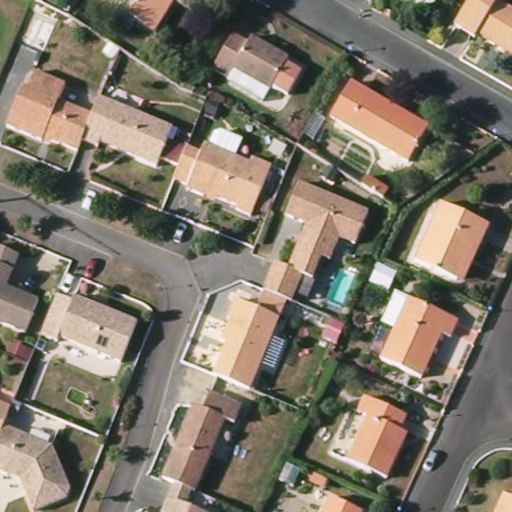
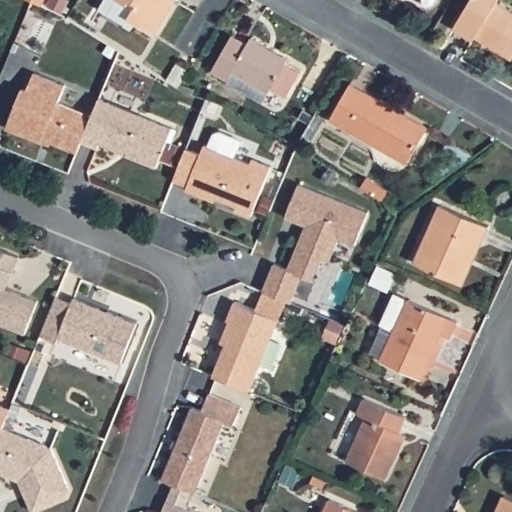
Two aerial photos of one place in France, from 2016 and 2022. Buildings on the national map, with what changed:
unchanged [(173,3),(155,38),(124,22),(132,7),(115,0),(169,0),(173,3)]
unchanged [(470,0),(499,0),(497,4),(512,14),(512,59),(509,63),(449,32),(470,0)]
unchanged [(242,44),(248,38),(287,59),(284,67),(298,76),(281,97),(267,91),(262,105),(224,89),(225,84),(210,74),(230,37),(242,44)]
unchanged [(99,149),(98,152),(79,148),(76,154),(4,134),(17,89),(24,90),(29,76),(65,89),(59,105),(89,116),(96,101),(168,131),(153,171),(99,149)]
unchanged [(426,127),(406,163),(328,122),(350,85),(426,127)]
unchanged [(255,166),(239,208),(210,198),(207,203),(183,192),(201,146),(255,166)]
unchanged [(366,213),(351,248),(336,245),(327,265),(317,263),(308,285),(300,283),(291,306),(259,294),(269,265),(287,269),(299,230),(285,222),(296,189),(366,213)]
unchanged [(462,285),(412,265),(439,209),(488,230),(462,285)]
unchanged [(0,327),(0,252),(19,260),(7,289),(35,304),(21,335),(0,327)]
unchanged [(59,340),(55,345),(39,339),(53,297),(67,302),(72,298),(134,324),(118,363),(59,340)]
unchanged [(420,381),(381,366),(382,359),(369,354),(378,332),(389,335),(391,332),(381,327),(393,300),(408,304),(453,325),(448,342),(439,339),(420,381)]
unchanged [(250,393),(209,377),(222,346),(218,344),(232,304),(280,322),(250,393)]
unchanged [(232,430),(223,426),(195,497),(159,483),(188,408),(201,413),(208,398),(239,409),(232,430)]
unchanged [(405,418),(400,434),(407,436),(386,479),(344,466),(365,421),(355,418),(361,402),(405,418)]
unchanged [(10,409),(3,430),(53,450),(67,499),(40,512),(26,512),(13,483),(0,479),(0,405),(10,409)]
unchanged [(512,502),(512,512),(495,512),(501,497),(512,502)]
unchanged [(349,512),(321,512),(325,503),(349,512)]
unchanged [(186,512),(160,512),(163,505),(186,512)]

